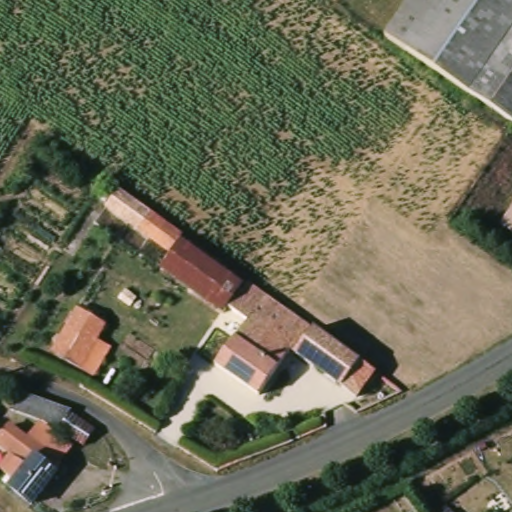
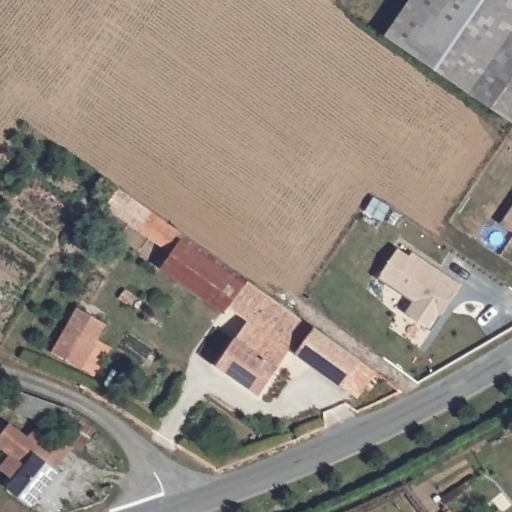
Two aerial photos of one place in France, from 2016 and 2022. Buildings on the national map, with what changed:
unchanged [(412,0),(512,0),(512,124),(386,39),(412,0)]
unchanged [(167,255),(105,211),(117,191),(181,235),(167,255)]
unchanged [(504,227),(512,216),(512,233),(504,227)]
unchanged [(229,307),(225,312),(159,267),(167,255),(181,235),(246,281),(229,307)]
new [(405,314),(413,302),(378,279),(398,249),(409,256),(412,252),(462,285),(431,331),(405,314)]
unchanged [(246,281),(310,325),(372,367),(353,394),(290,352),(260,395),(217,366),(249,322),(229,307),(246,281)]
unchanged [(109,322),(80,365),(52,347),(81,305),(109,322)]
unchanged [(11,389),(72,410),(70,413),(97,429),(89,441),(62,425),(7,407),(11,389)]
unchanged [(0,435),(11,422),(31,437),(42,421),(74,447),(63,461),(50,450),(44,459),(27,447),(18,459),(11,453),(0,445),(0,435)]
unchanged [(50,450),(63,461),(57,469),(60,472),(37,502),(15,486),(17,482),(0,470),(0,468),(11,453),(18,459),(27,447),(44,459),(50,450)]

